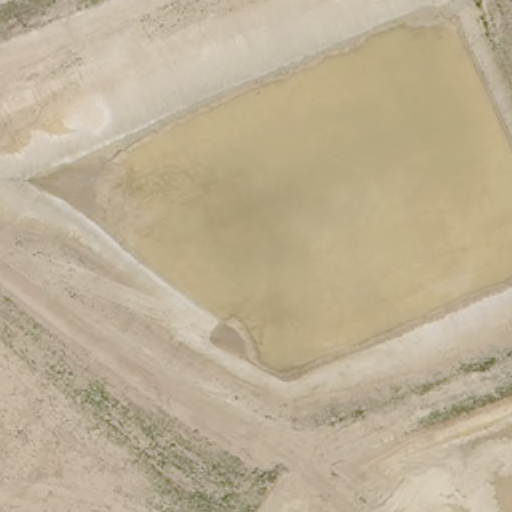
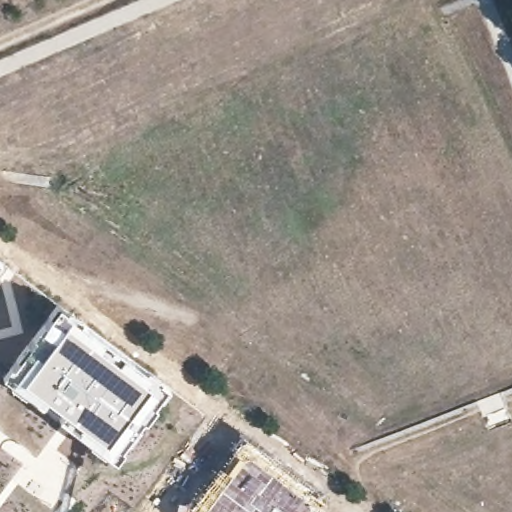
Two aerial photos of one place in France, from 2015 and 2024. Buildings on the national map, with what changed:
new [(58,302),(170,386),(113,461),(0,375),(0,374),(58,302)]
new [(231,452),(242,437),(259,451),(283,476),(315,501),(311,512),(185,512),(233,453),(231,452)]
new [(324,504),(322,512),(311,512),(315,501),(324,504)]

